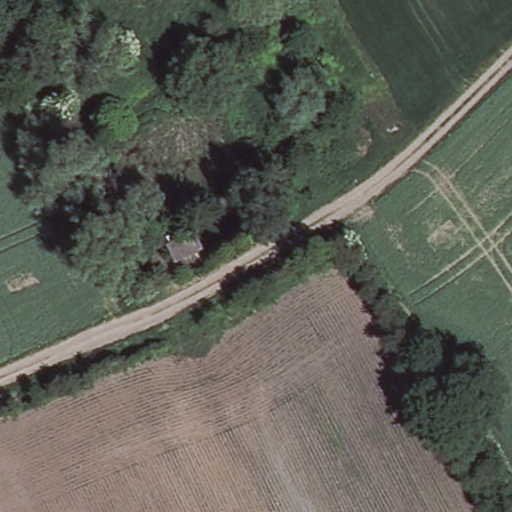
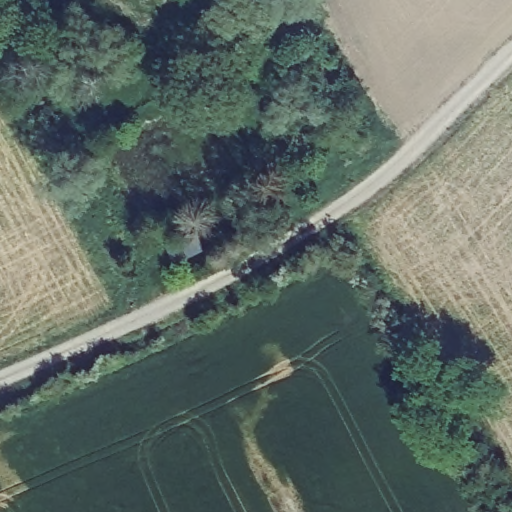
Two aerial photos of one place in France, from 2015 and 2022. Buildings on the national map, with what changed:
unchanged [(160,248),(189,234),(197,250),(169,265),(160,248)]

